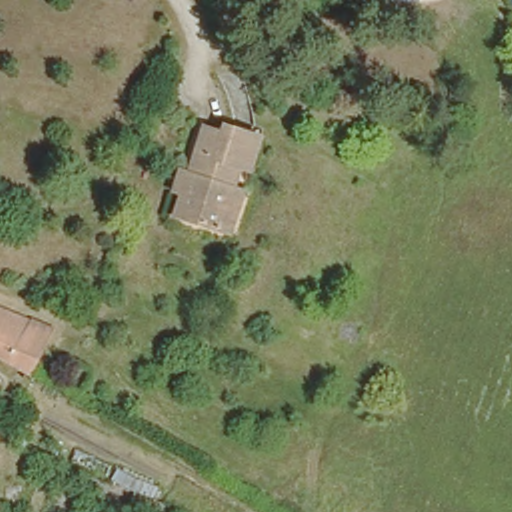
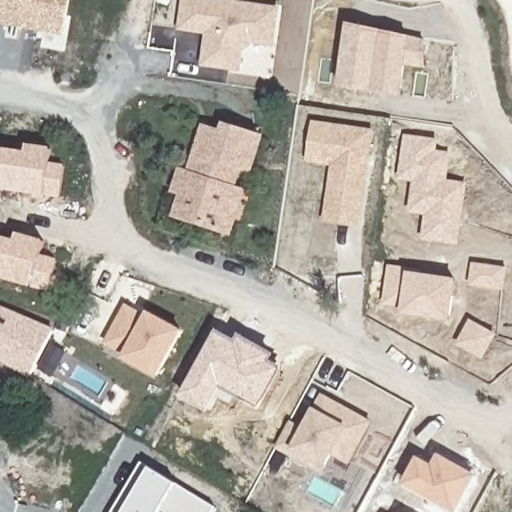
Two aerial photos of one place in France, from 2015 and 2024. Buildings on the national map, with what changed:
new [(71,0),(64,36),(0,25),(0,0),(71,0)]
new [(239,75),(198,67),(203,35),(177,30),(182,0),(230,0),(281,7),(277,49),(254,45),(244,51),(239,75)]
new [(347,25),(428,37),(424,69),(406,65),(401,96),(340,87),(347,25)]
unchanged [(237,185),(222,230),(212,225),(172,211),(177,195),(179,187),(169,184),(175,165),(191,170),(192,165),(197,151),(192,149),(201,123),(216,128),(220,119),(255,131),(249,150),(244,164),(233,160),(226,181),(235,185),(237,185)]
new [(331,166),(306,162),(312,120),(376,130),(362,227),(324,222),(331,166)]
new [(426,215),(410,213),(413,181),(399,179),(405,135),(440,139),(439,150),(452,152),(449,180),(469,182),(460,246),(422,240),(426,215)]
new [(27,151),(28,144),(52,147),(50,161),(66,165),(62,197),(46,195),(0,189),(0,148),(27,151)]
new [(16,239),(18,232),(46,240),(43,254),(59,258),(51,291),(33,287),(0,279),(0,235),(16,239)]
new [(473,262),(508,266),(506,290),(470,285),(473,262)]
new [(403,307),(384,305),(389,265),(423,270),(423,273),(458,278),(453,321),(402,314),(403,307)]
unchanged [(53,325),(29,370),(0,355),(0,302),(53,325)]
new [(126,353),(105,343),(127,303),(148,313),(149,310),(186,330),(160,377),(123,358),(126,353)]
new [(471,320),(499,335),(485,360),(458,345),(471,320)]
new [(218,329),(238,340),(240,333),(277,353),(274,360),(285,366),(263,410),(238,395),(234,403),(222,397),(215,411),(213,408),(210,413),(181,396),(218,329)]
new [(350,465),(333,456),(323,477),(272,450),(289,421),(299,425),(312,401),(315,405),(322,393),(374,421),(350,465)]
new [(434,465),(440,453),(476,475),(457,510),(406,482),(419,455),(434,465)]
new [(151,466),(177,482),(217,506),(213,512),(170,512),(164,508),(161,512),(112,512),(143,461),(151,466)]

